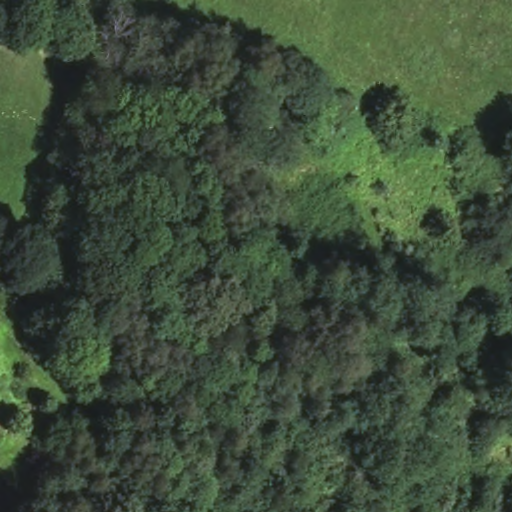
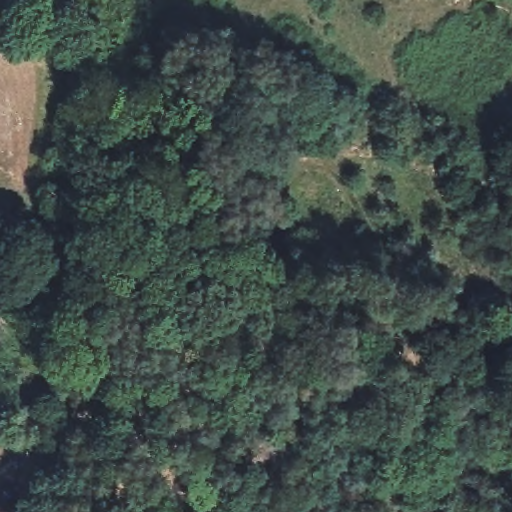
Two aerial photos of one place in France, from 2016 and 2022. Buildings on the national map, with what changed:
[]

